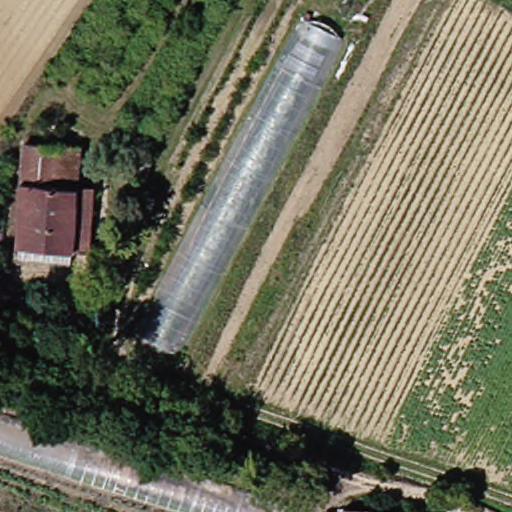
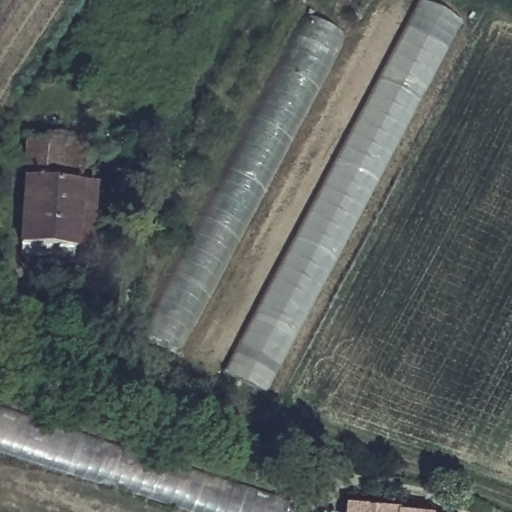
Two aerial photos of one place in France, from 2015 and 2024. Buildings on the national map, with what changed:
new [(268,390),(222,371),(416,1),(459,21),(268,390)]
unchanged [(141,333),(312,14),(346,30),(177,350),(141,333)]
unchanged [(94,139),(87,245),(30,240),(38,134),(94,139)]
unchanged [(288,512),(204,512),(0,451),(0,409),(292,496),(288,512)]
unchanged [(404,505),(404,508),(428,512),(346,512),(347,503),(404,505)]

